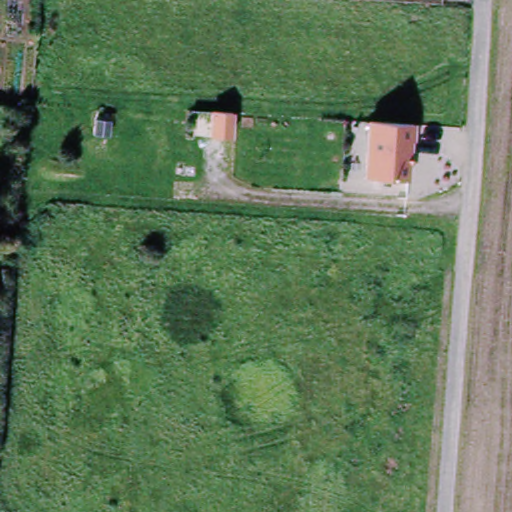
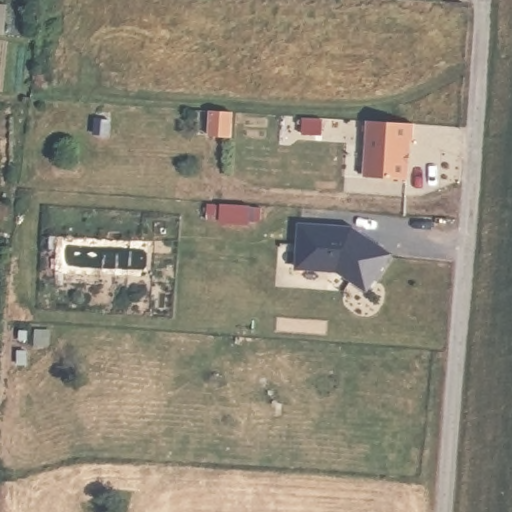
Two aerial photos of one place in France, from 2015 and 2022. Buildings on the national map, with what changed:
new [(235,114),(233,139),(213,137),(215,112),(235,114)]
unchanged [(413,125),(410,180),(363,178),(365,122),(413,125)]
new [(250,223),(218,221),(219,205),(250,207),(250,223)]
new [(366,291),(337,272),(297,269),(300,226),(352,230),(390,256),(366,291)]

